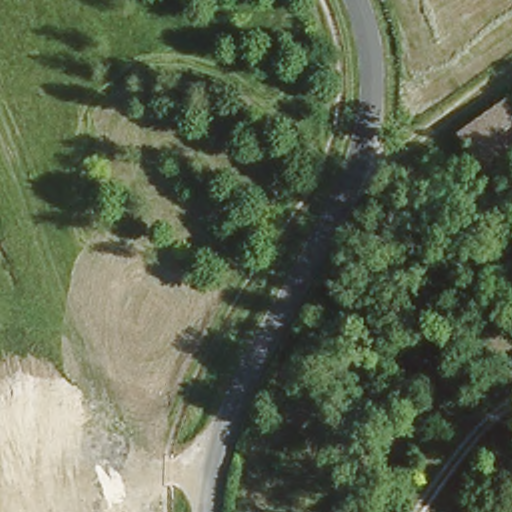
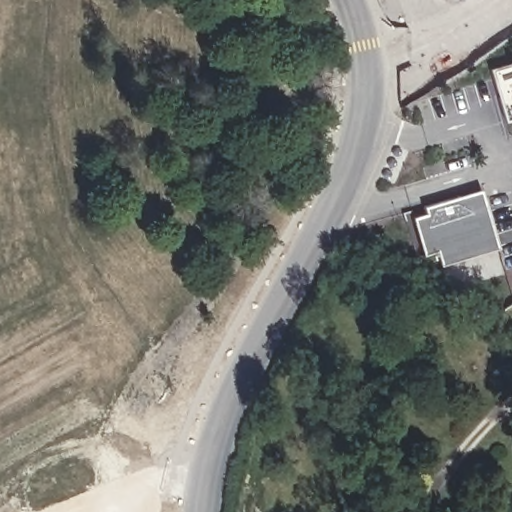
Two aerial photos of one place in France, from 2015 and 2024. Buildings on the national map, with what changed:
new [(512,66),(512,117),(498,70),(512,66)]
new [(484,192),(501,249),(447,262),(444,252),(430,255),(420,220),(431,217),(429,206),(484,192)]

